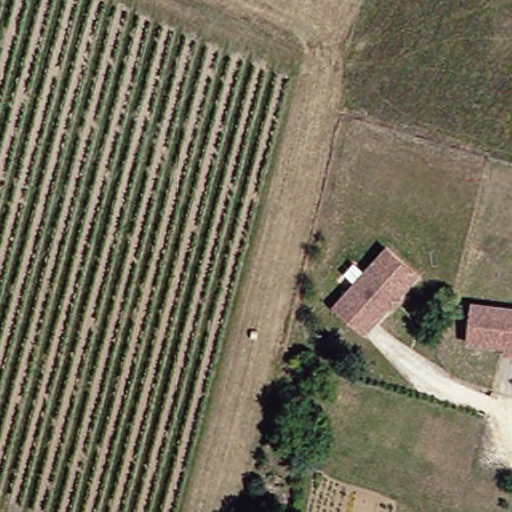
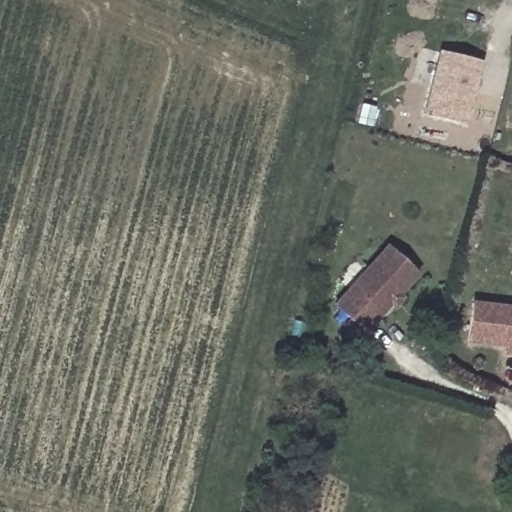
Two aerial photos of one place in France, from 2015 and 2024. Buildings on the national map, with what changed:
new [(468,122),(427,111),(444,49),(486,60),(479,84),(477,89),(468,122)]
unchanged [(418,276),(367,335),(336,308),(350,292),(339,282),(356,263),(367,273),(387,250),(418,276)]
unchanged [(502,342),(465,338),(470,299),(512,304),(512,350),(502,348),(502,342)]

